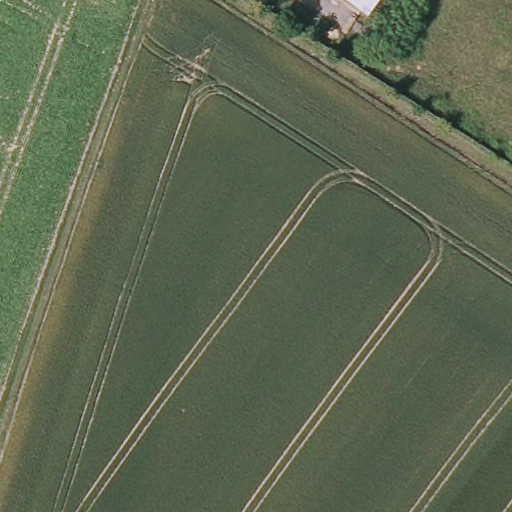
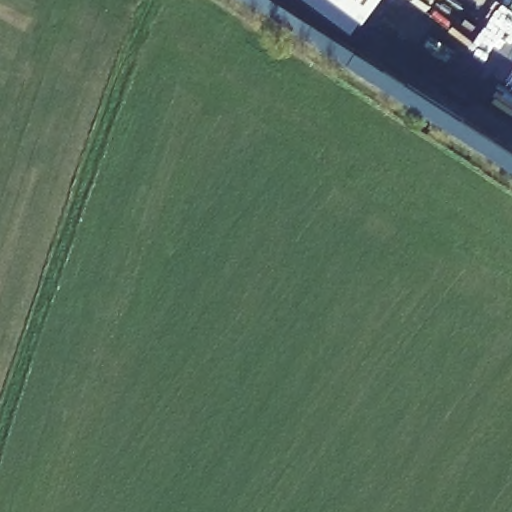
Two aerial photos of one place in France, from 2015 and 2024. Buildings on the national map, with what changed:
unchanged [(342,0),(372,0),(362,14),(342,0)]

